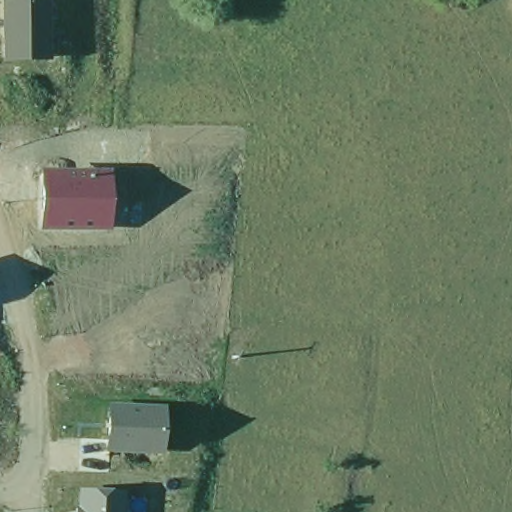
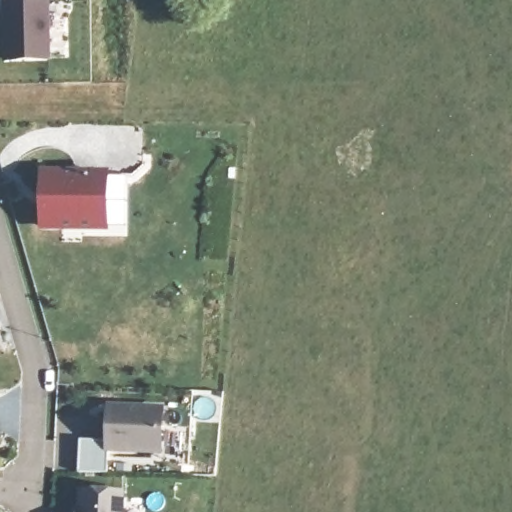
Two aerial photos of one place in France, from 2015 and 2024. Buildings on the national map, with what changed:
unchanged [(47,1),(49,59),(5,60),(5,2),(47,1)]
unchanged [(107,175),(107,228),(42,227),(43,174),(107,175)]
unchanged [(78,472),(80,440),(108,441),(110,407),(162,410),(160,452),(109,450),(107,473),(78,472)]
unchanged [(80,510),(81,492),(122,494),(121,512),(76,512),(76,510),(80,510)]

